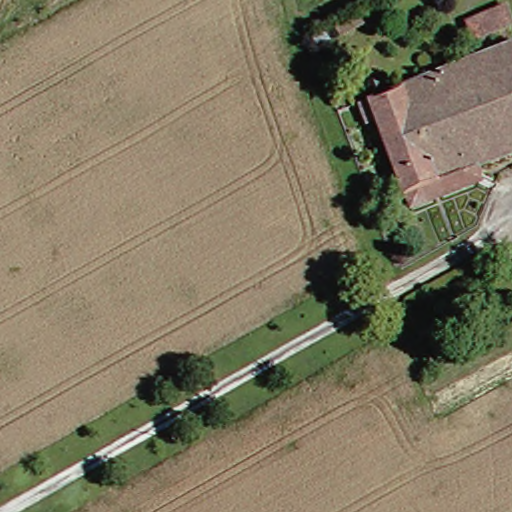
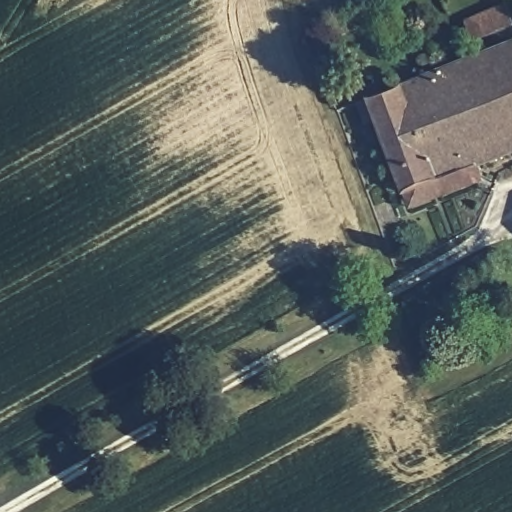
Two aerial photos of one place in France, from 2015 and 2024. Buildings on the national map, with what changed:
unchanged [(510,11),(512,19),(512,31),(479,43),(471,23),(510,11)]
unchanged [(347,44),(375,31),(381,42),(352,54),(347,44)]
unchanged [(372,126),(365,108),(381,102),(512,51),(512,157),(480,170),(407,197),(381,125),(372,126)]
unchanged [(485,186),(415,214),(407,197),(480,170),(485,186)]

